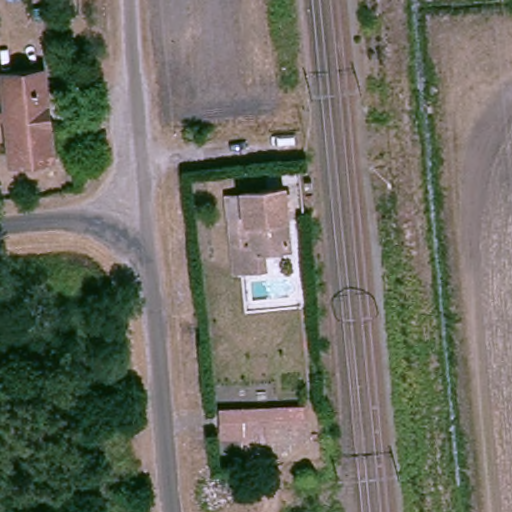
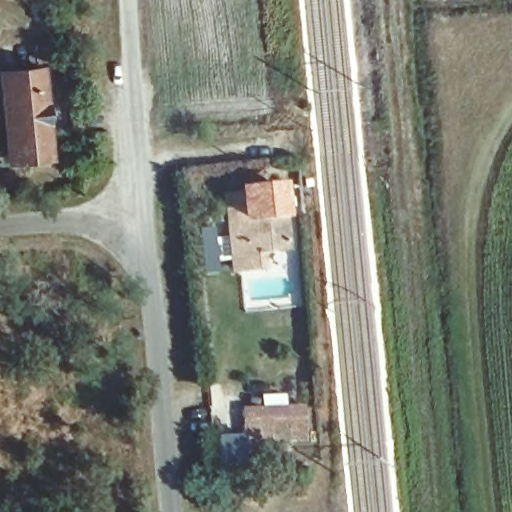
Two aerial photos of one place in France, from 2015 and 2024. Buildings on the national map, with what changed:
unchanged [(59,153),(14,156),(9,73),(8,66),(51,63),(51,68),(59,153)]
unchanged [(287,247),(256,250),(257,270),(232,269),(230,251),(230,248),(226,193),(234,193),(282,188),(287,247)]
unchanged [(283,436),(266,436),(264,421),(284,421),(282,408),(310,404),(313,436),(283,440),(283,436)]
unchanged [(252,444),(252,436),(229,439),(226,415),(282,408),(284,421),(264,421),(266,436),(283,436),(283,440),(252,444)]

